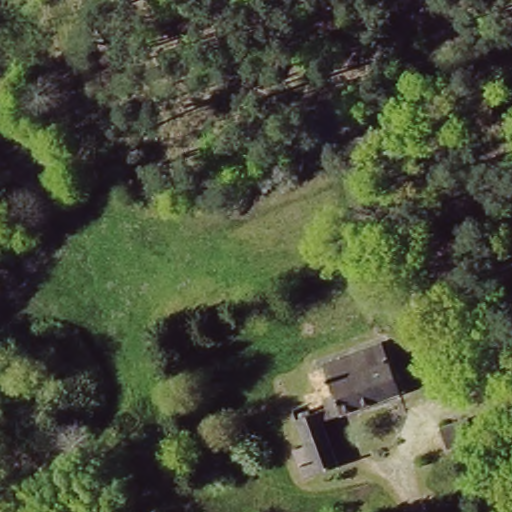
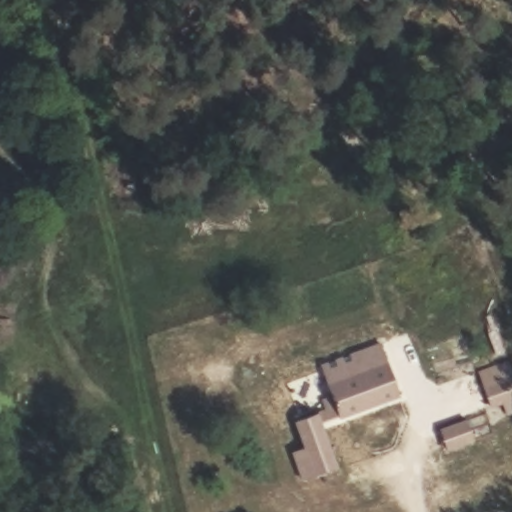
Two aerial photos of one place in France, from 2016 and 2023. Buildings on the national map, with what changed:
unchanged [(343,416),(315,360),(377,333),(402,391),(343,416)]
unchanged [(310,486),(295,451),(309,446),(293,410),(320,400),(340,442),(357,434),(368,460),(310,486)]

